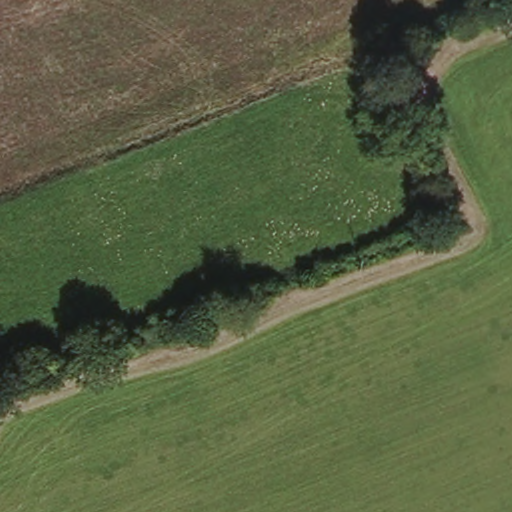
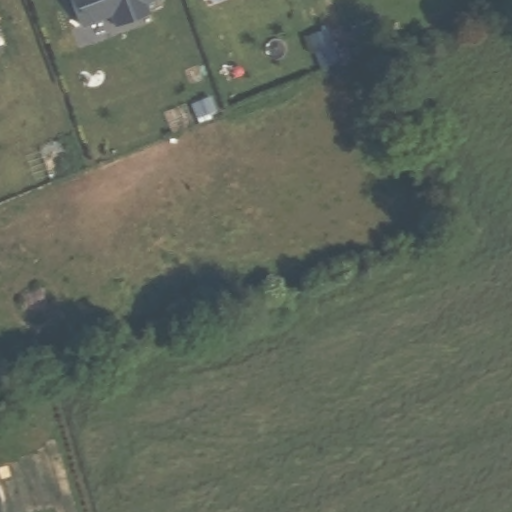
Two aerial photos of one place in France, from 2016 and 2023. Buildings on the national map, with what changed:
new [(148,11),(115,24),(110,12),(79,24),(70,0),(144,0),(148,11)]

